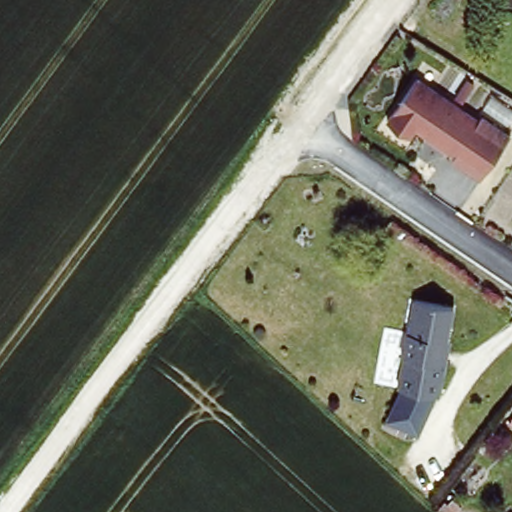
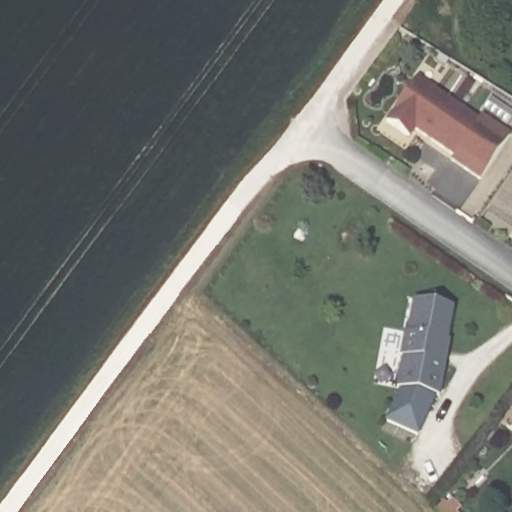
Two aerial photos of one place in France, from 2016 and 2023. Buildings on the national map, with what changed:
unchanged [(446,72),(437,87),(475,115),(482,111),(508,129),(479,176),(453,159),(459,151),(415,124),(410,132),(390,116),(429,64),(446,72)]
unchanged [(452,365),(448,397),(405,393),(410,359),(405,359),(408,335),(412,336),(417,304),(457,307),(450,356),(450,364),(452,365)]
unchanged [(512,425),(512,429),(510,428),(512,425)]
unchanged [(443,501),(455,512),(439,512),(436,509),(443,501)]

